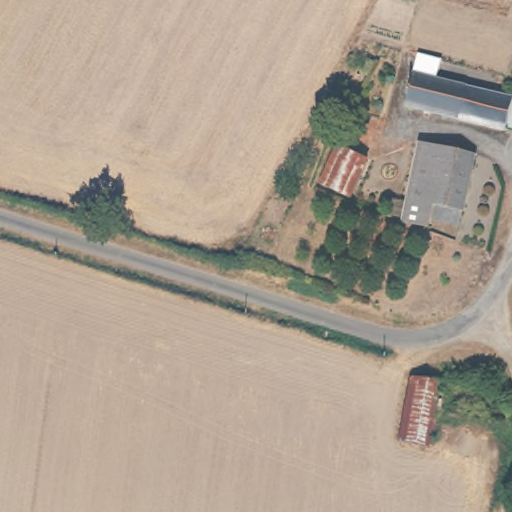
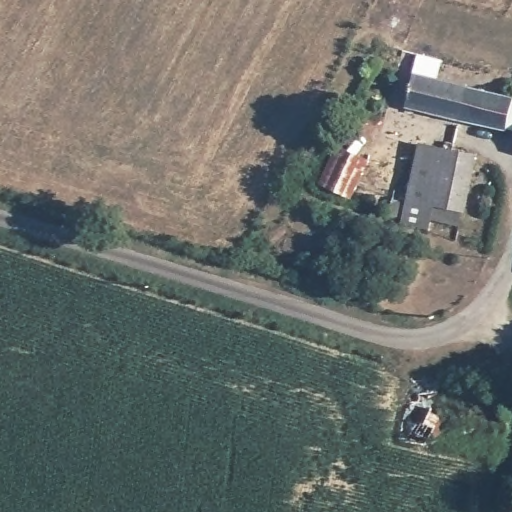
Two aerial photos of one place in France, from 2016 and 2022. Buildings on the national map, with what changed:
unchanged [(403,107),(416,49),(442,56),(438,75),(512,95),(512,103),(511,107),(512,107),(512,132),(504,130),(403,107)]
unchanged [(478,155),(461,224),(433,218),(431,226),(403,220),(421,142),(478,155)]
unchanged [(370,162),(350,196),(322,181),(340,147),(370,162)]
unchanged [(430,448),(399,444),(410,380),(441,383),(437,412),(430,448)]
unchanged [(481,389),(501,395),(501,423),(437,412),(441,383),(481,389)]

